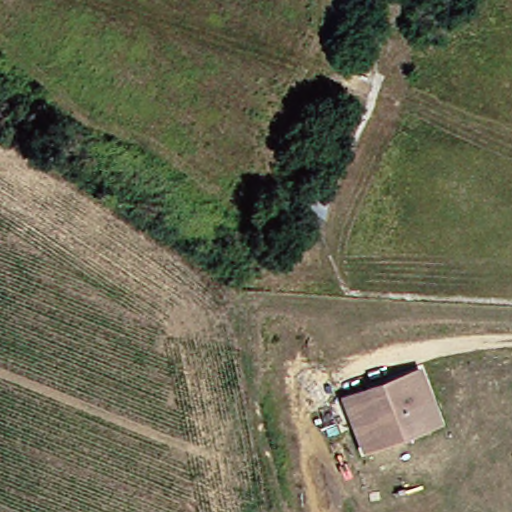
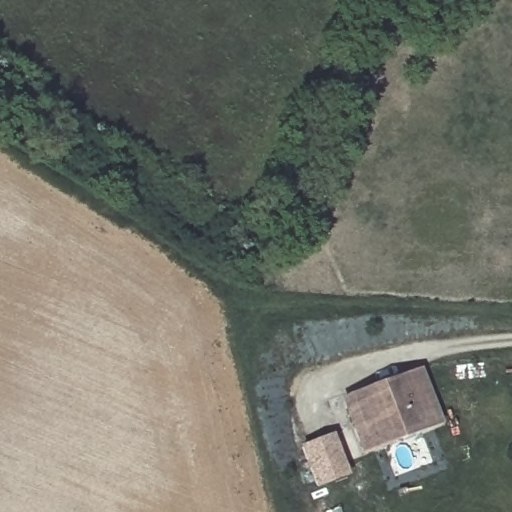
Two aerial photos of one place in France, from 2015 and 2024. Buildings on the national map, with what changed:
unchanged [(352,421),(343,397),(419,371),(437,423),(385,441),(362,450),(352,421)]
new [(301,445),(334,432),(350,474),(317,487),(301,445)]

